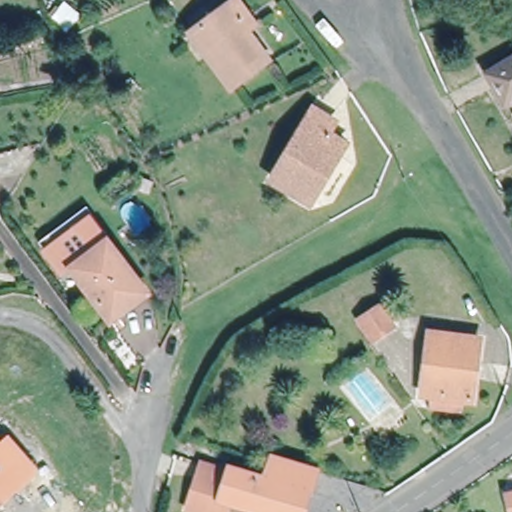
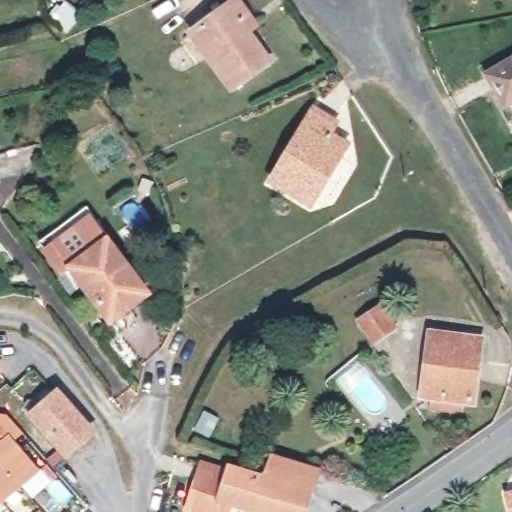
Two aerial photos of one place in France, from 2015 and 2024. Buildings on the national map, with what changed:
unchanged [(244,31),(266,61),(229,87),(190,33),(234,1),(252,25),(244,31)]
unchanged [(66,32),(48,18),(56,9),(74,23),(66,32)]
unchanged [(504,109),(485,76),(512,60),(512,104),(504,109)]
unchanged [(269,180),(312,110),(333,124),(326,136),(343,146),(309,203),(269,180)]
unchanged [(74,269),(67,275),(49,252),(93,219),(149,293),(113,320),(74,269)]
unchanged [(393,314),(399,324),(376,339),(362,317),(386,303),(393,314)]
unchanged [(473,399),(420,393),(421,384),(407,382),(410,350),(425,351),(427,330),(481,336),(473,399)]
new [(55,394),(91,433),(89,435),(88,434),(67,453),(68,454),(66,455),(31,415),(55,394)]
unchanged [(0,451),(7,445),(34,476),(22,485),(0,505),(0,451)]
unchanged [(313,498),(308,497),(304,512),(240,512),(233,510),(232,512),(191,512),(203,471),(229,478),(230,475),(264,484),(270,463),(287,468),(319,477),(313,498)]
unchanged [(507,499),(512,498),(512,512),(510,512),(507,499)]

